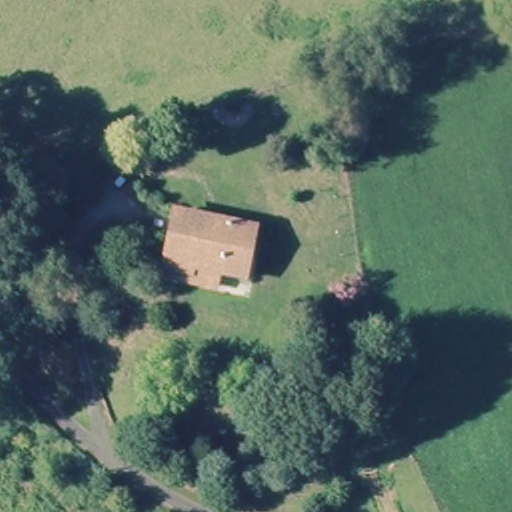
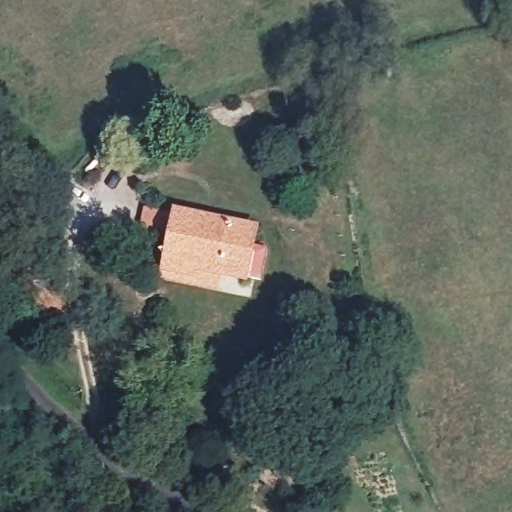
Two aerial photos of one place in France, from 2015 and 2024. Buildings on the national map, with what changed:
unchanged [(161,275),(168,219),(250,229),(244,277),(216,273),(214,294),(159,287),(161,275)]

